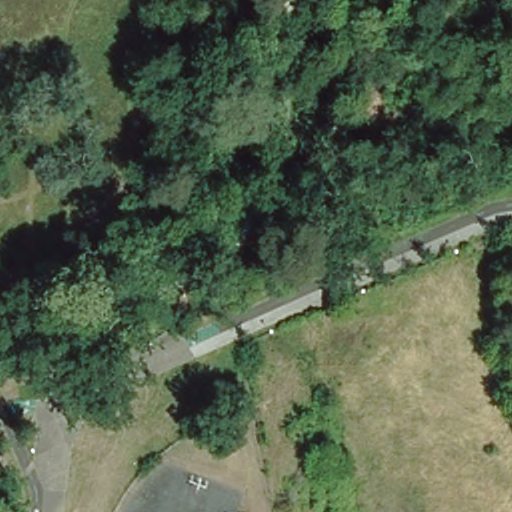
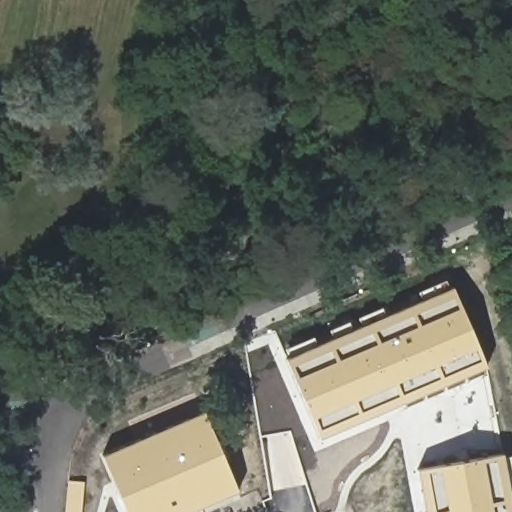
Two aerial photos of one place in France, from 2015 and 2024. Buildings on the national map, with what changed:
new [(451,287),(486,367),(320,438),(285,358),(451,287)]
unchanged [(343,298),(350,312),(340,315),(334,302),(343,298)]
new [(238,491),(189,512),(126,512),(101,455),(204,411),(238,491)]
new [(512,503),(512,512),(426,512),(418,469),(503,453),(512,503)]
new [(81,512),(66,512),(68,480),(83,482),(81,512)]

